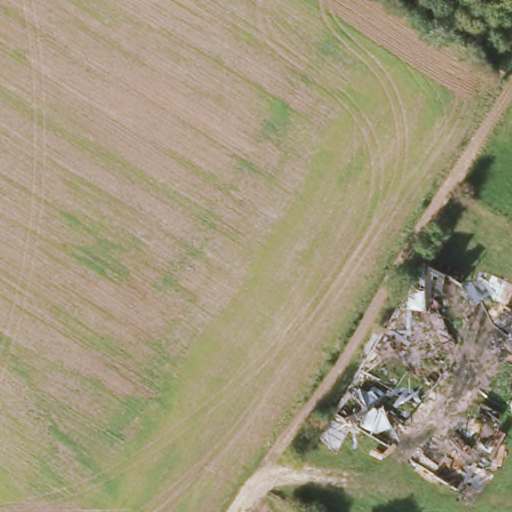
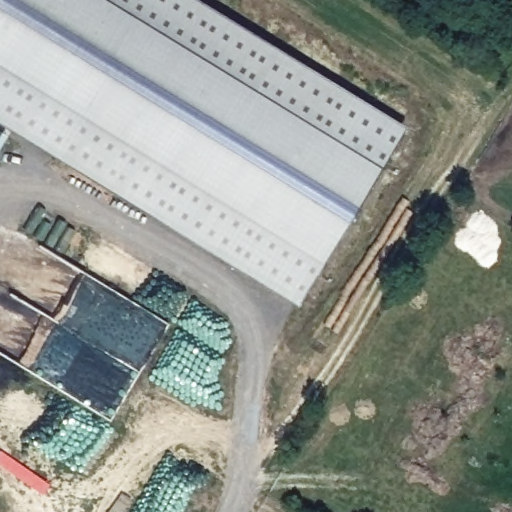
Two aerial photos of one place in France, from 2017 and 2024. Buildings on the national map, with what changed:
new [(46,0),(0,74),(0,0),(46,0)]
new [(300,309),(0,121),(0,74),(46,0),(183,0),(406,139),(300,309)]
demolished [(335,412),(426,264),(482,298),(385,447),(335,412)]
demolished [(512,316),(512,398),(455,487),(385,447),(482,298),(512,316)]

